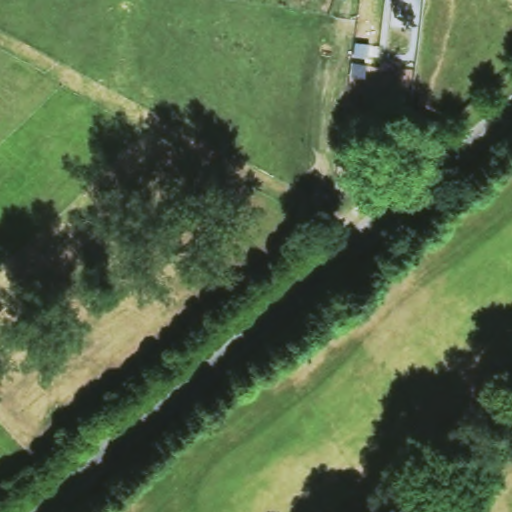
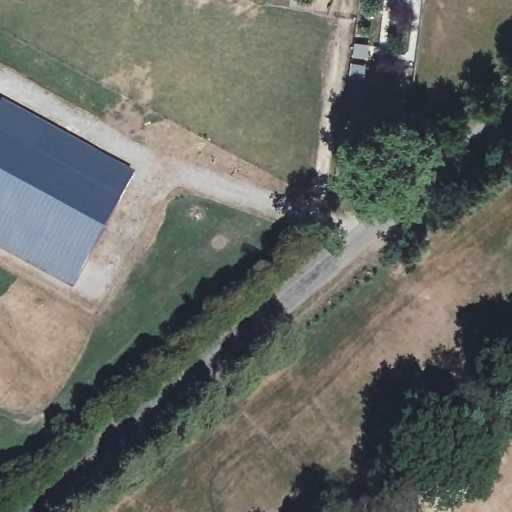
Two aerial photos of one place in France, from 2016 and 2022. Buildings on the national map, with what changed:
new [(4,102),(47,125),(32,153),(120,201),(75,285),(0,244),(0,108),(4,102)]
new [(47,125),(135,174),(120,201),(32,153),(47,125)]

